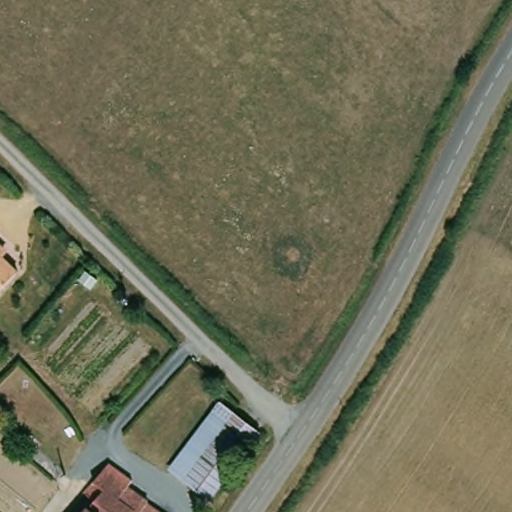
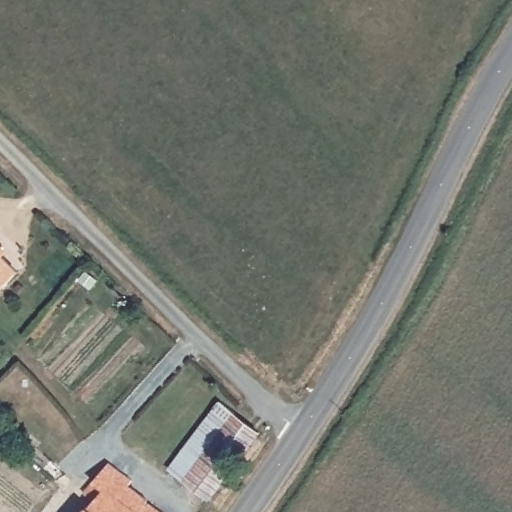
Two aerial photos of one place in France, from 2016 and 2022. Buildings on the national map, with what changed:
unchanged [(20,277),(0,297),(0,258),(20,277)]
unchanged [(199,489),(182,476),(227,414),(249,430),(199,489)]
unchanged [(89,492),(109,468),(117,473),(111,480),(118,485),(112,493),(122,500),(136,510),(133,512),(85,512),(97,499),(89,492)]
unchanged [(122,500),(137,481),(157,497),(154,502),(169,512),(133,512),(136,510),(122,500)]

